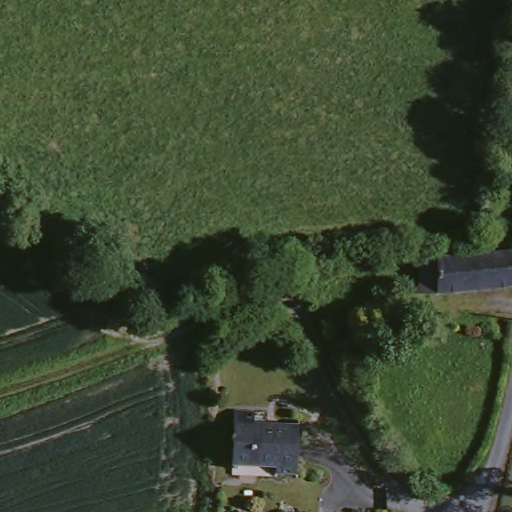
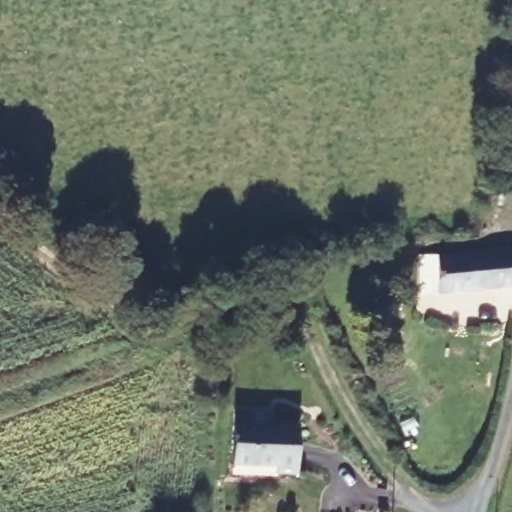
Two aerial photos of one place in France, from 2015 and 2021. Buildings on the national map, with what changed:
unchanged [(418,286),(427,283),(425,257),(444,254),(512,244),(512,280),(456,288),(449,290),(420,293),(418,286)]
unchanged [(279,405),(277,427),(305,429),(300,479),(278,477),(279,468),(236,465),(242,402),(279,405)]

